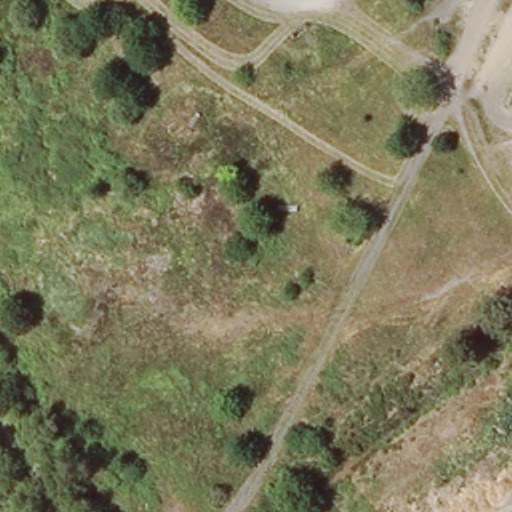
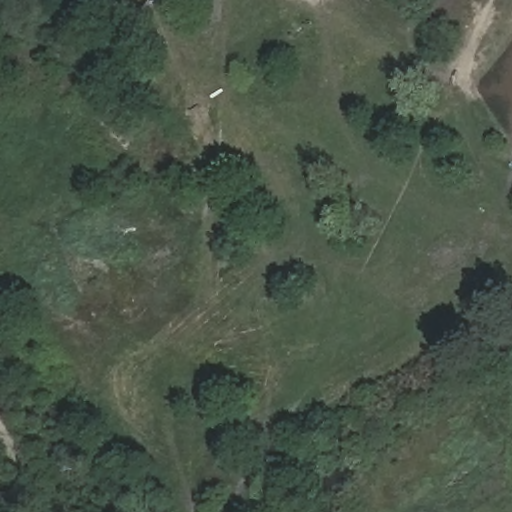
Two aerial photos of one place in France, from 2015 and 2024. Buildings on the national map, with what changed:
[]

